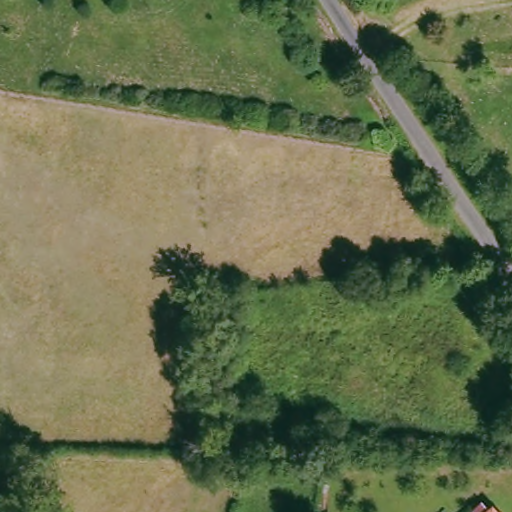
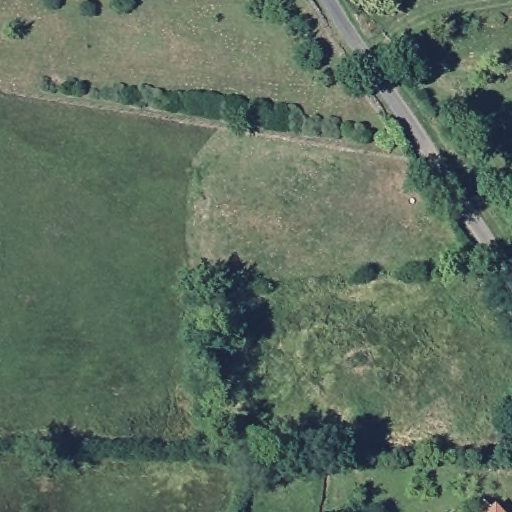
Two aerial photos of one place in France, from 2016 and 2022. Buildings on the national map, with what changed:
unchanged [(481,512),(479,510),(489,500),(498,510),(499,508),(503,512),(481,512)]

